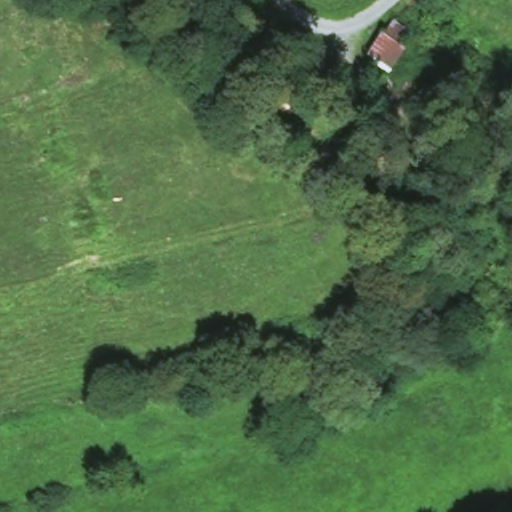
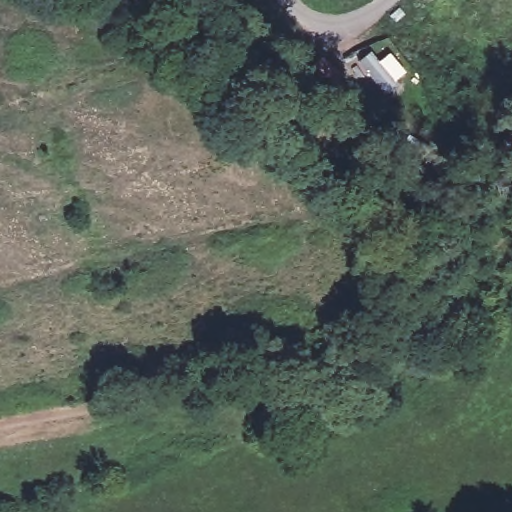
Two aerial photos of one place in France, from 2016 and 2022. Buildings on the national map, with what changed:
unchanged [(387,14),(410,36),(387,71),(359,50),(387,14)]

